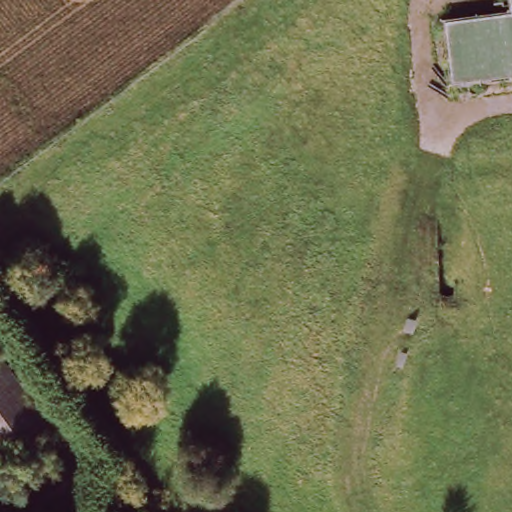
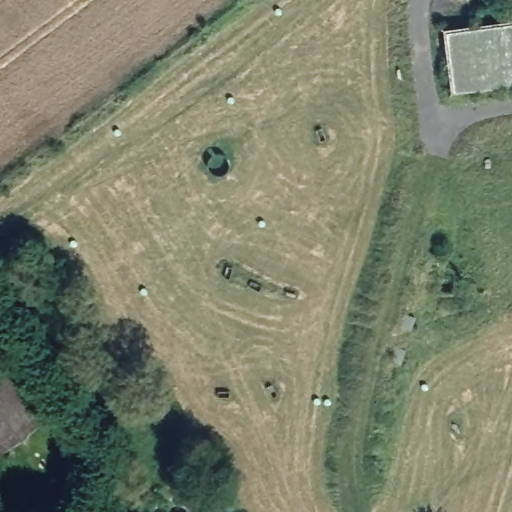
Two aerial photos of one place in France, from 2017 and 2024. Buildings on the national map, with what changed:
unchanged [(511,0),(512,0),(512,11),(511,0)]
unchanged [(452,92),(445,30),(512,22),(512,84),(452,92)]
unchanged [(0,436),(0,353),(40,407),(0,436)]

